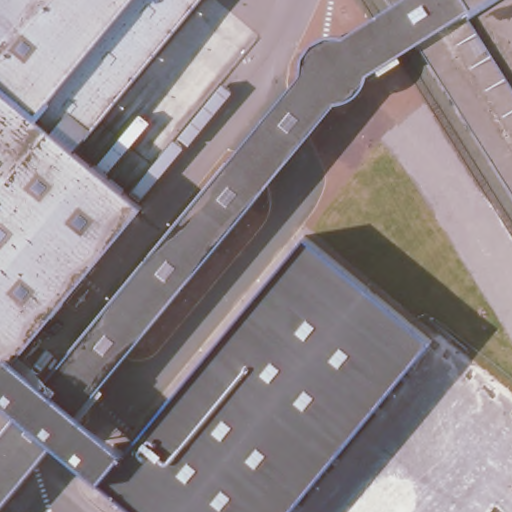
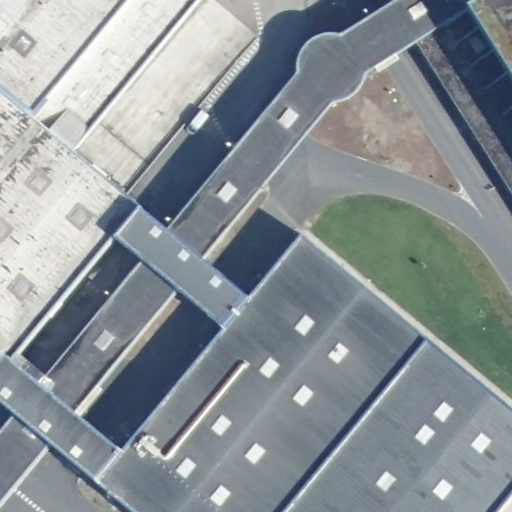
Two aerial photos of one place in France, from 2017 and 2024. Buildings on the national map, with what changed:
unchanged [(63,106),(50,122),(147,204),(13,365),(0,381),(0,0),(134,0),(53,97),(63,106)]
new [(50,122),(63,106),(53,97),(134,0),(200,0),(80,147),(50,122)]
unchanged [(406,52),(382,14),(373,0),(512,0),(512,219),(406,52)]
unchanged [(43,390),(188,215),(300,79),(298,68),(302,56),(314,44),(328,38),(342,38),(382,14),(406,52),(366,75),(365,86),(357,97),(347,104),(335,106),(220,244),(76,417),(43,390)]
new [(172,234),(148,263),(117,239),(141,210),(172,234)]
unchanged [(43,390),(76,417),(122,454),(301,237),(427,341),(287,512),(134,512),(97,482),(52,446),(19,419),(0,404),(0,381),(13,365),(43,390)]
new [(250,300),(225,330),(180,292),(205,262),(250,300)]
new [(431,342),(512,410),(512,505),(506,512),(291,512),(431,342)]
unchanged [(52,446),(0,508),(0,442),(19,419),(52,446)]

